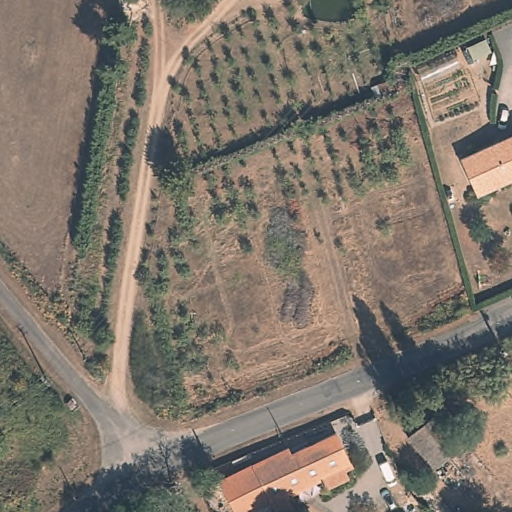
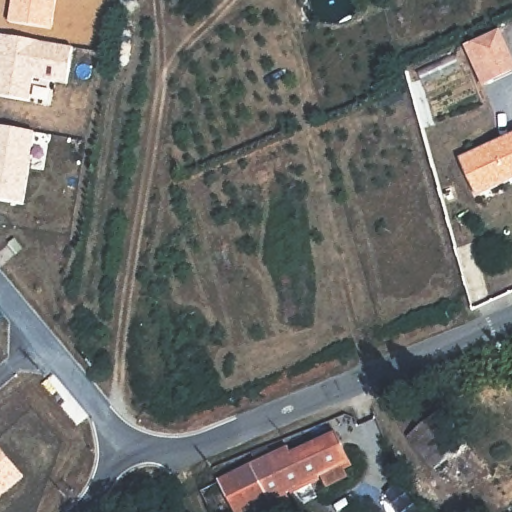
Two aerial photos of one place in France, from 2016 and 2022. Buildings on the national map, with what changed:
new [(12,0),(59,0),(54,30),(8,23),(12,0)]
new [(75,47),(70,85),(34,79),(30,101),(0,97),(0,36),(75,47)]
new [(35,132),(24,205),(0,202),(0,127),(35,132)]
unchanged [(512,138),(512,180),(473,198),(458,157),(495,139),(497,146),(512,138)]
unchanged [(437,412),(465,443),(430,469),(402,438),(437,412)]
unchanged [(252,465),(320,436),(334,432),(353,476),(325,487),(322,480),(268,501),(252,465)]
new [(24,478),(0,498),(0,450),(24,478)]
unchanged [(211,512),(199,487),(252,465),(268,501),(240,512),(211,512)]
unchanged [(185,502),(190,512),(173,512),(171,509),(185,502)]

